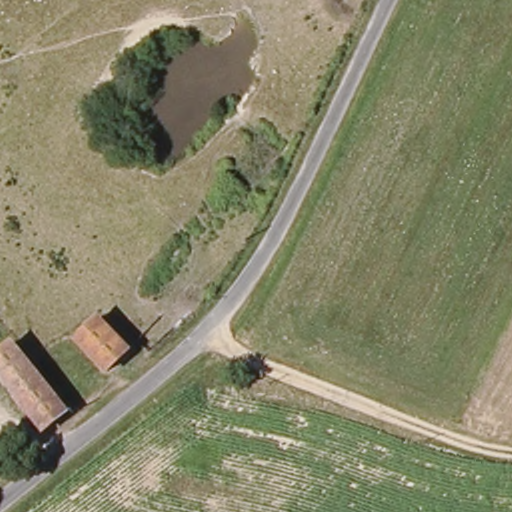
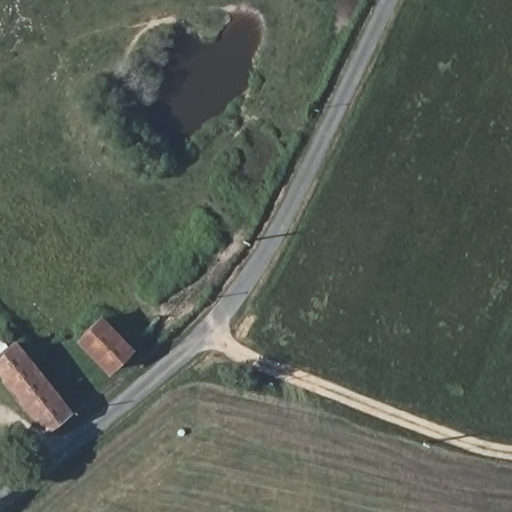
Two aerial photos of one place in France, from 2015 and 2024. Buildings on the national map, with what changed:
unchanged [(81,338),(101,319),(131,352),(110,370),(81,338)]
unchanged [(68,413),(46,430),(0,369),(0,354),(16,343),(68,413)]

